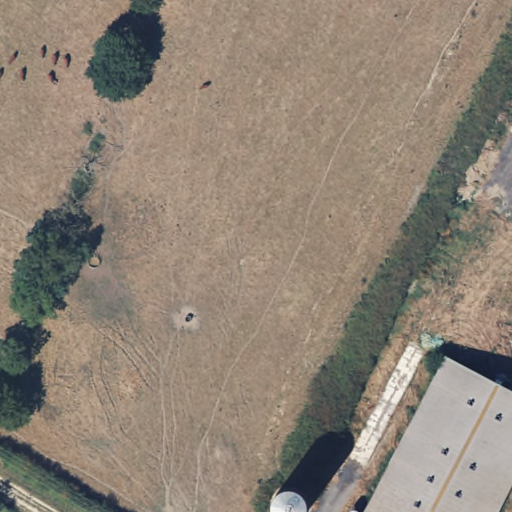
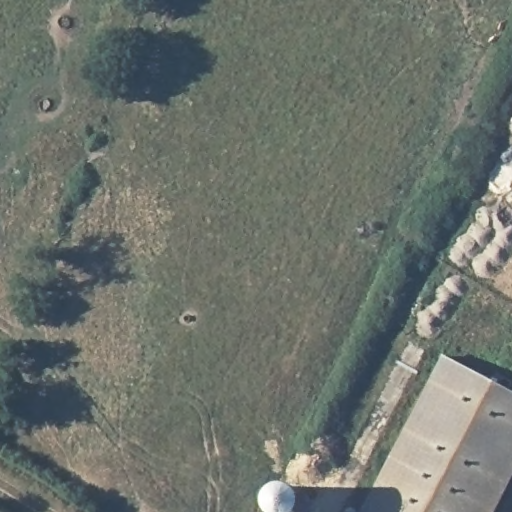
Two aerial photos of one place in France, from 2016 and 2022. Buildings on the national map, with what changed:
unchanged [(512,478),(494,512),(360,512),(440,356),(512,393),(512,478)]
unchanged [(306,497),(307,500),(307,506),(304,512),(273,512),(272,511),(271,505),(271,498),(273,492),(278,487),(285,485),(291,485),(297,487),(302,491),(306,497)]

